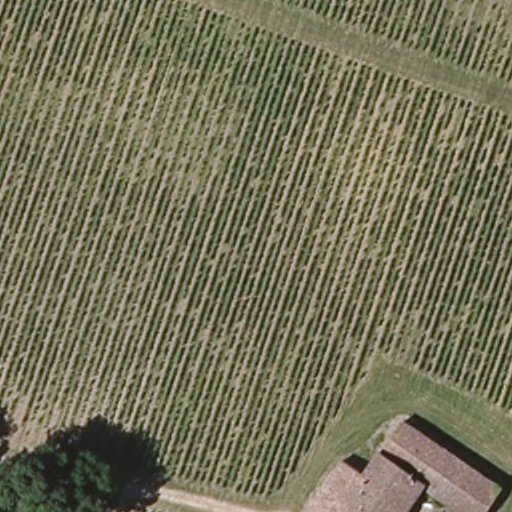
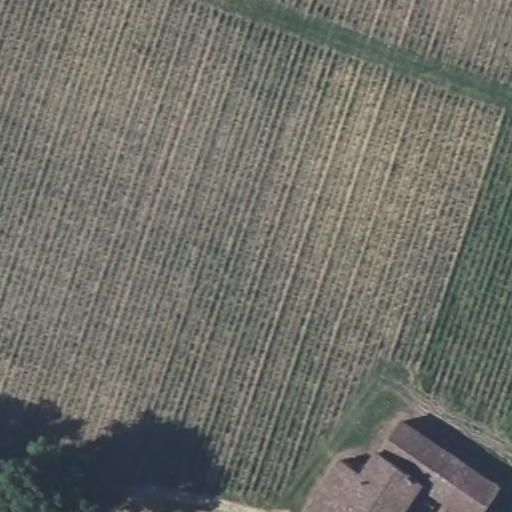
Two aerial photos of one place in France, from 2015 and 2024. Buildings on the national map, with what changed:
unchanged [(355,491),(408,417),(504,483),(484,512),(480,512),(431,478),(407,512),(340,512),(355,491)]
unchanged [(335,477),(355,491),(340,512),(311,512),(335,477)]

